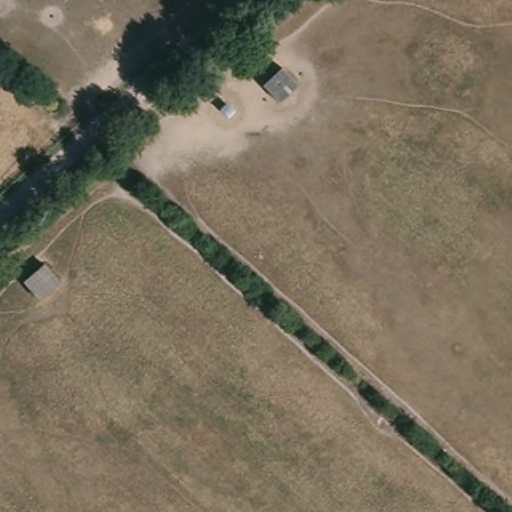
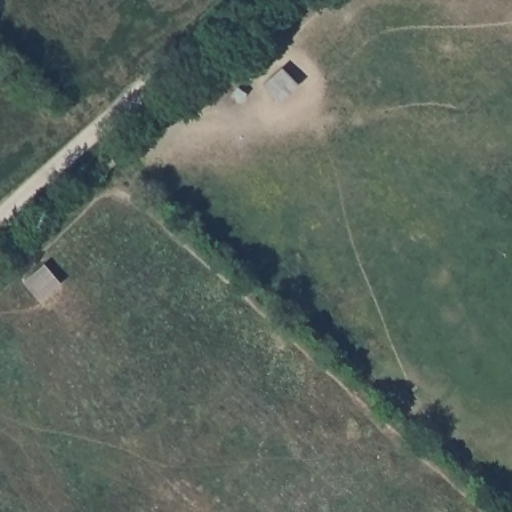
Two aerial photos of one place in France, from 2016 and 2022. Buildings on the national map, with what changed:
unchanged [(281,67),(300,89),(277,108),(259,86),(281,67)]
unchanged [(44,263),(62,288),(36,305),(20,282),(44,263)]

